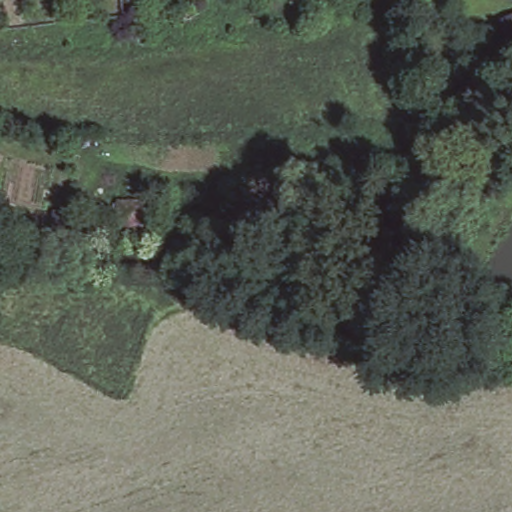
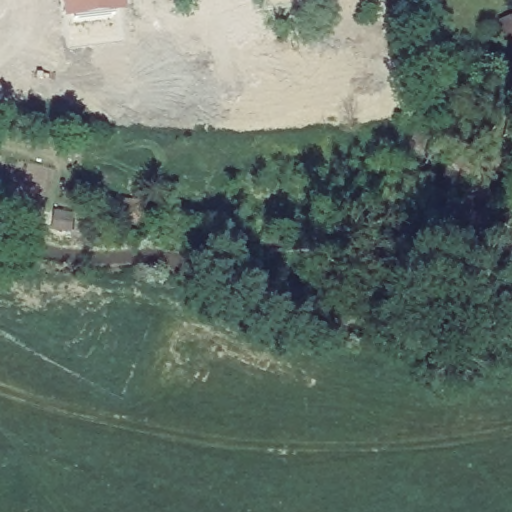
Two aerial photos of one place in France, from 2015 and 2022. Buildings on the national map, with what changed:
new [(127,6),(67,13),(65,0),(127,0),(127,6)]

